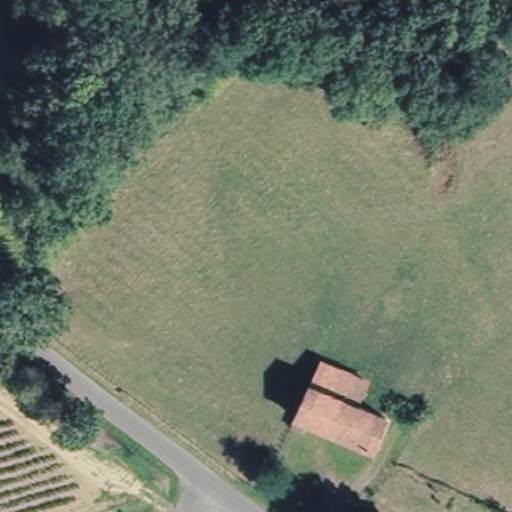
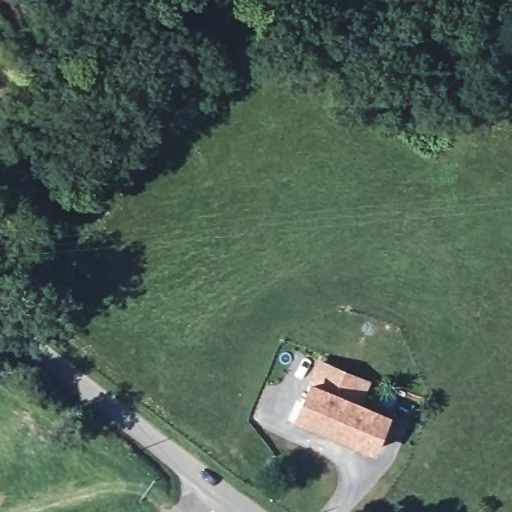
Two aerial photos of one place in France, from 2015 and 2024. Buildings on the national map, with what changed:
unchanged [(309,380),(319,356),(366,376),(356,400),(309,380)]
unchanged [(309,380),(356,400),(386,413),(372,445),(308,417),(303,427),(290,421),(309,380)]

